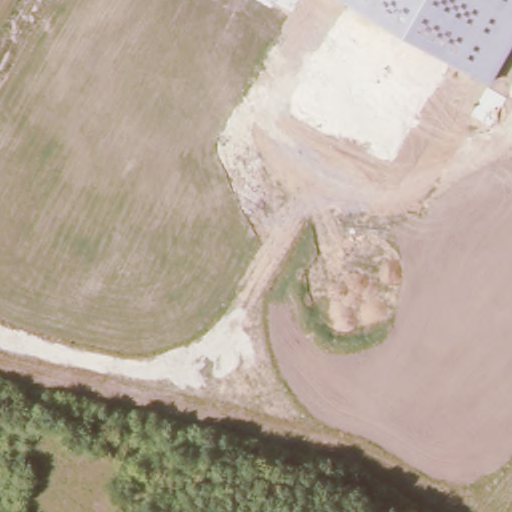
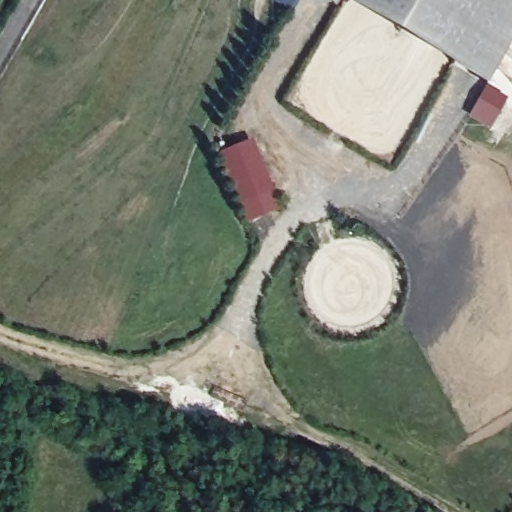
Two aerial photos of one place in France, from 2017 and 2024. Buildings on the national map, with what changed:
unchanged [(512,40),(488,82),(347,0),(512,0),(512,40)]
new [(220,154),(253,140),(256,148),(260,147),(262,154),(260,156),(282,210),(248,224),(220,154)]

